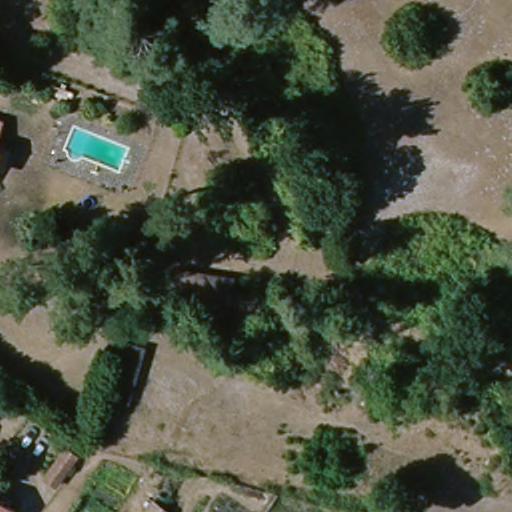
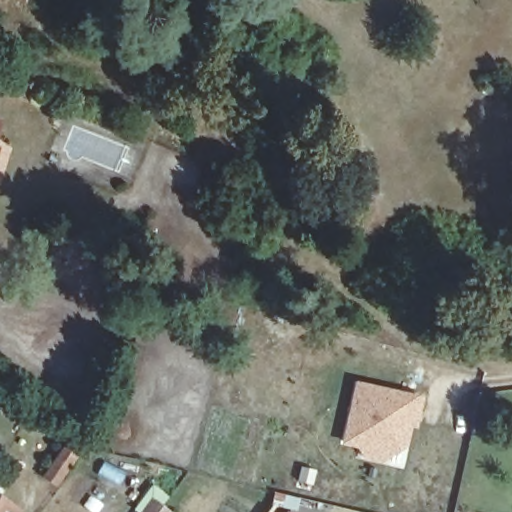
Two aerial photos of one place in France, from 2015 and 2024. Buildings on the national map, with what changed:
unchanged [(2,125),(0,133),(0,124),(2,125)]
unchanged [(126,405),(102,398),(124,340),(147,349),(126,405)]
new [(425,395),(417,427),(412,425),(408,445),(385,460),(363,455),(358,446),(341,442),(355,380),(425,395)]
unchanged [(55,483),(45,475),(66,446),(76,454),(55,483)]
unchanged [(161,505),(170,511),(168,512),(144,512),(154,499),(161,505)]
unchanged [(11,512),(0,512),(0,505),(11,512)]
new [(287,511),(288,512),(286,512),(287,511)]

